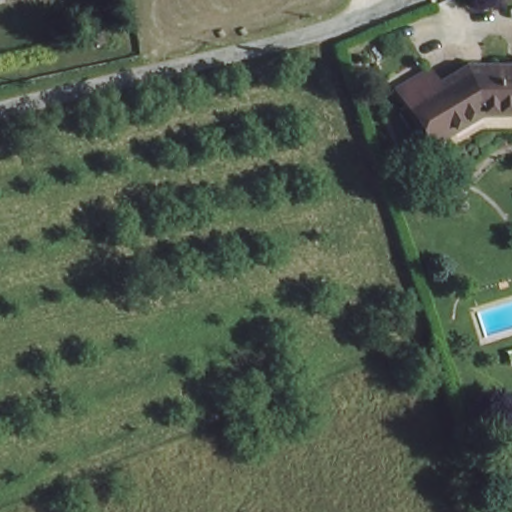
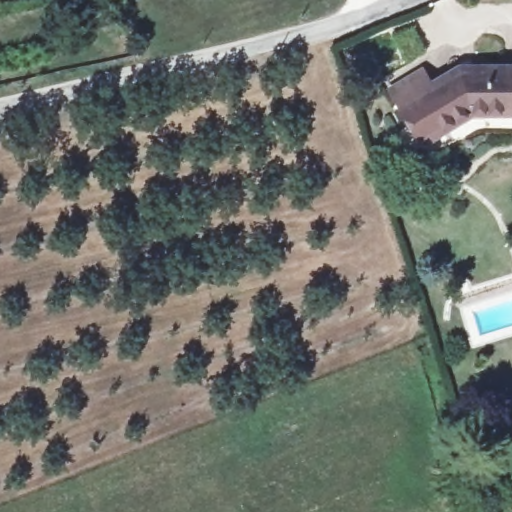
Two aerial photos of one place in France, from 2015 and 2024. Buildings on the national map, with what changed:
unchanged [(391,98),(424,80),(431,91),(462,75),(512,76),(512,119),(470,121),(437,138),(420,146),(410,129),(391,98)]

